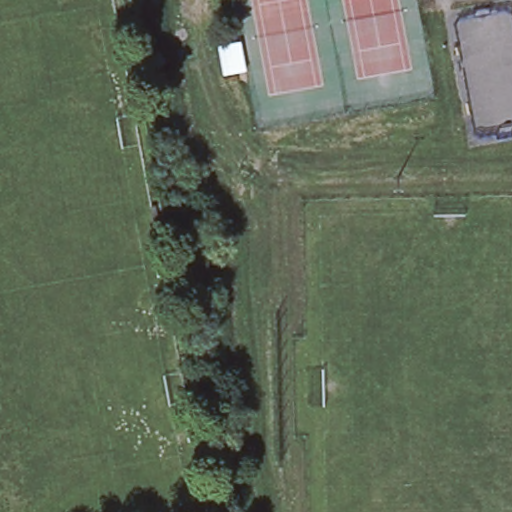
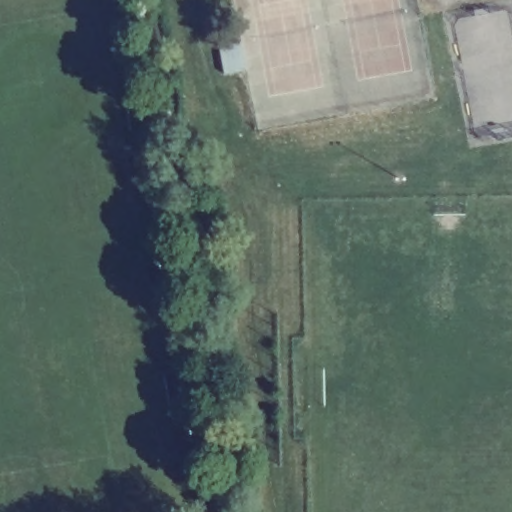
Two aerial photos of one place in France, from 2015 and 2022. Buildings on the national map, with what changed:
unchanged [(241,44),(245,73),(225,77),(218,48),(241,44)]

